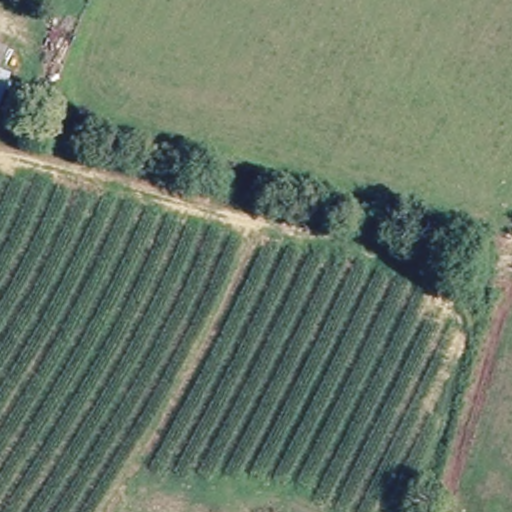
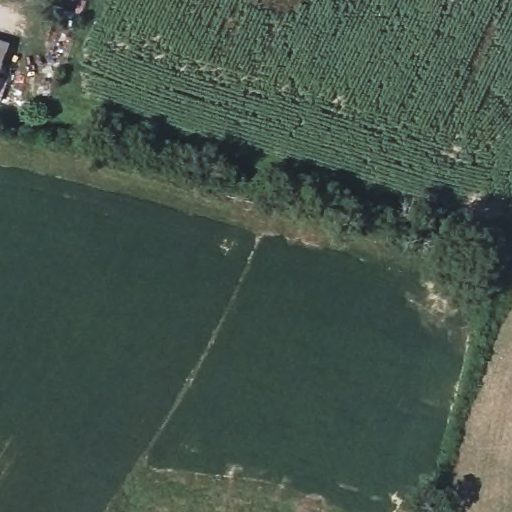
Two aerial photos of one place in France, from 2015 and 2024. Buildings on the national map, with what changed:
unchanged [(4,41),(0,51),(0,39),(4,41)]

